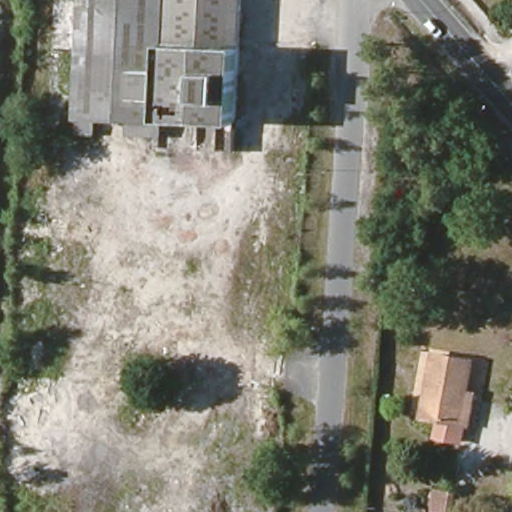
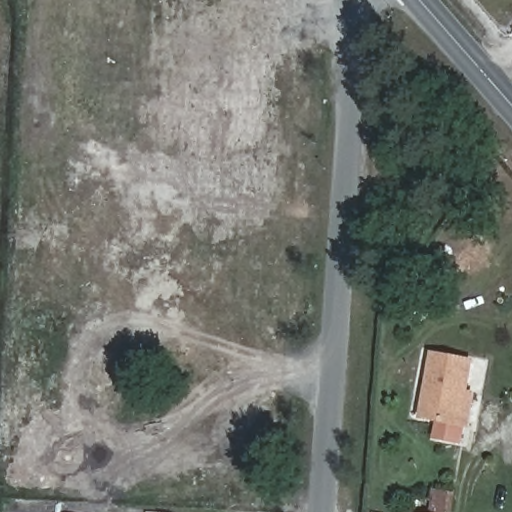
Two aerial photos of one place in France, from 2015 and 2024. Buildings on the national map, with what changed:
demolished [(74,117),(80,0),(240,0),(236,124),(74,117)]
unchanged [(437,420),(421,416),(432,354),(472,361),(467,392),(474,394),(468,425),(437,420)]
unchanged [(463,446),(433,442),(437,420),(466,425),(463,446)]
unchanged [(438,489),(459,493),(454,512),(433,512),(438,489)]

